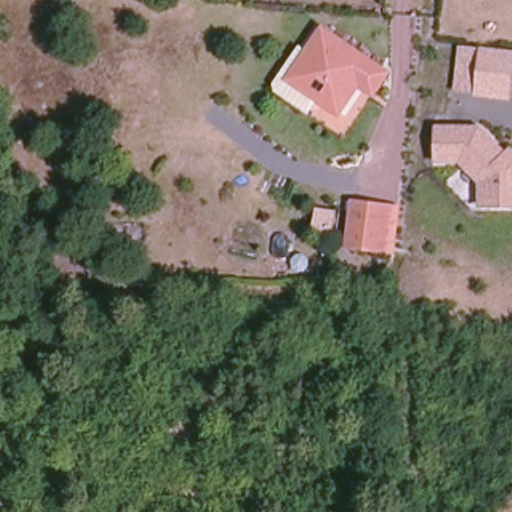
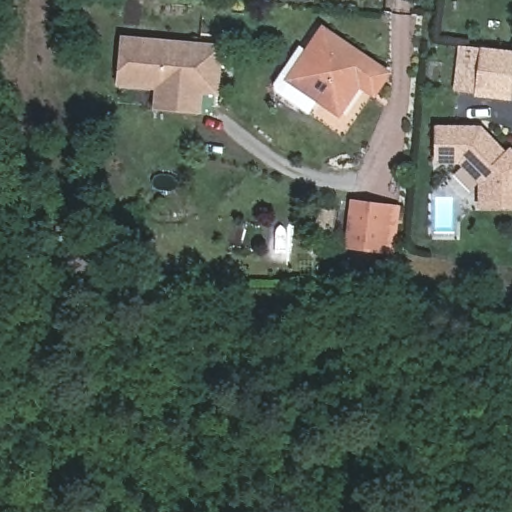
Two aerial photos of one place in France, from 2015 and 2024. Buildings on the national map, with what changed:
unchanged [(322,28),(390,73),(375,96),(360,85),(339,115),(287,80),(322,28)]
new [(200,111),(152,109),(154,88),(115,85),(120,34),(222,43),(219,95),(201,93),(200,111)]
unchanged [(512,61),(507,99),(475,95),(481,49),(512,53),(512,61)]
unchanged [(512,203),(476,202),(477,179),(456,157),(433,157),(435,124),(476,125),(503,152),(507,148),(512,154),(512,203)]
unchanged [(363,203),(395,207),(389,250),(357,246),(363,203)]

